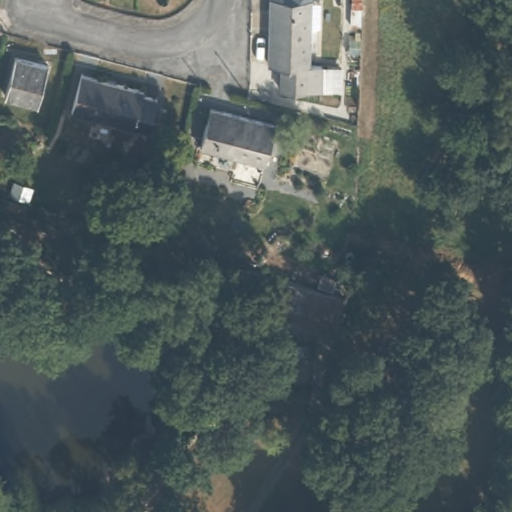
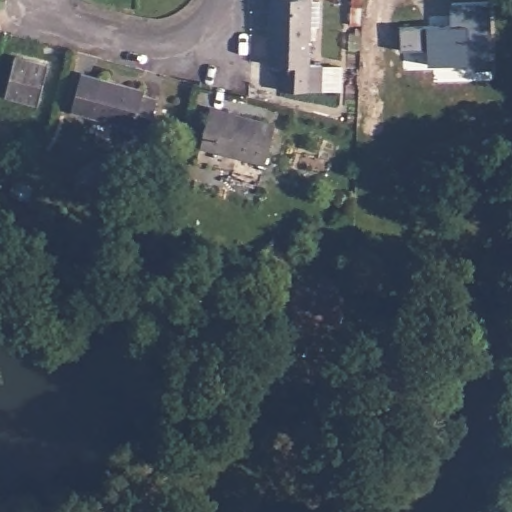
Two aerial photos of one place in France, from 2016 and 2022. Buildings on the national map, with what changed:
unchanged [(321,63),(320,89),(281,88),(280,63),(267,63),(269,0),(318,0),(318,23),(308,22),(307,63),(321,63)]
new [(452,23),(452,0),(490,0),(492,66),(467,67),(467,61),(428,62),(428,47),(401,47),(401,24),(452,23)]
unchanged [(39,106),(5,97),(14,57),(48,67),(39,106)]
unchanged [(144,98),(158,102),(150,135),(71,115),(80,79),(144,94),(144,98)]
unchanged [(265,164),(201,146),(211,109),(273,125),(265,164)]
unchanged [(331,338),(317,334),(244,311),(252,285),(327,308),(338,311),(331,338)]

